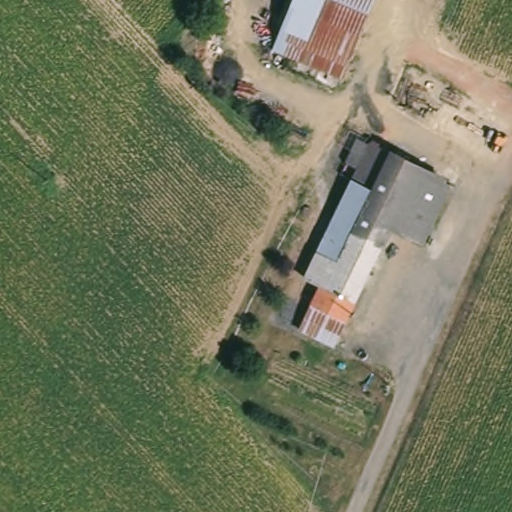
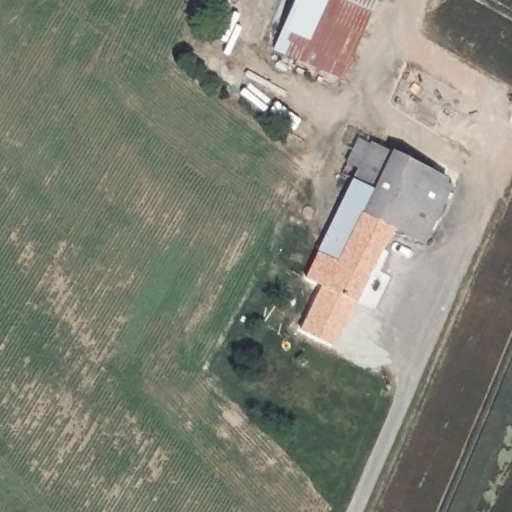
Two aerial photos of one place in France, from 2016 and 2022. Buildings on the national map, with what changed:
unchanged [(363,22),(339,85),(275,61),(295,0),(300,0),(363,22)]
unchanged [(363,22),(300,0),(371,0),(363,22)]
unchanged [(355,173),(366,149),(454,189),(425,250),(396,237),(339,353),(307,338),(327,295),(313,285),(364,177),(355,173)]

